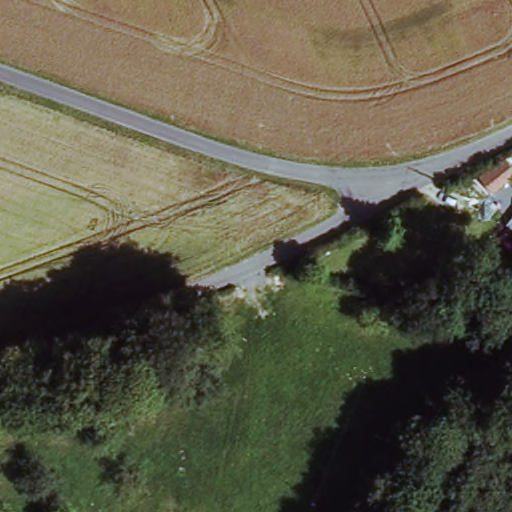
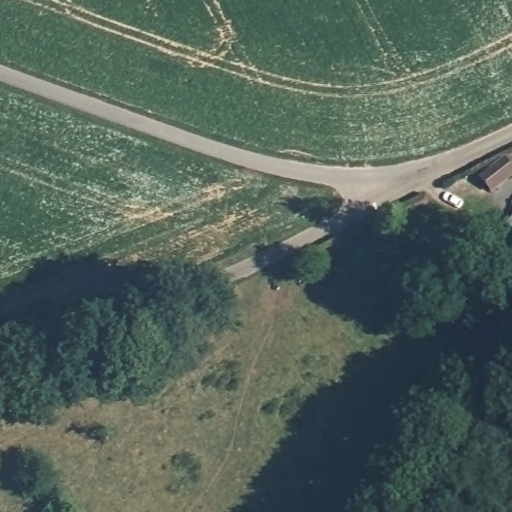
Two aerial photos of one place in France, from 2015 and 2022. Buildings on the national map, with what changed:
unchanged [(512,165),(512,177),(490,196),(474,175),(504,152),(512,165)]
unchanged [(505,286),(487,267),(505,253),(512,261),(512,282),(505,286)]

